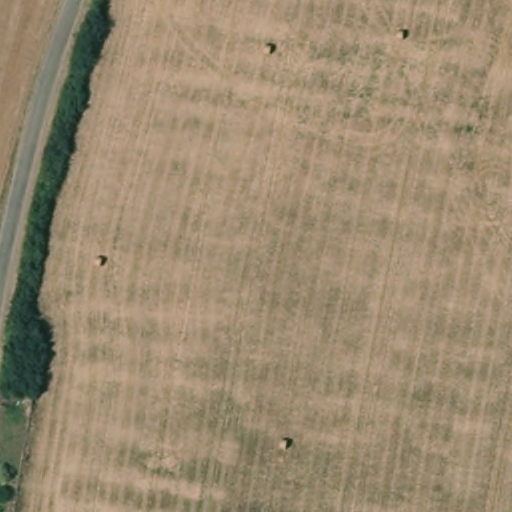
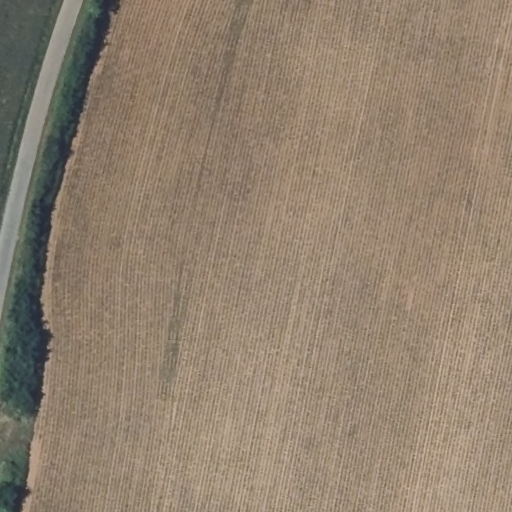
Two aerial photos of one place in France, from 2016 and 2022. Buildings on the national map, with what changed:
[]

